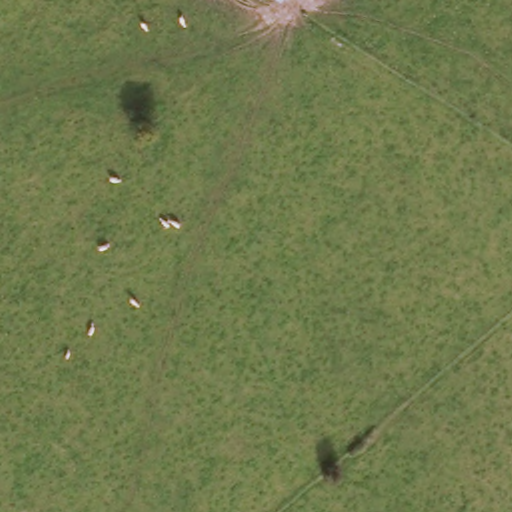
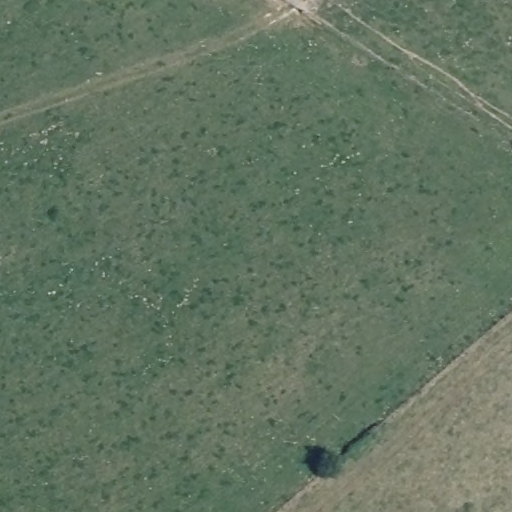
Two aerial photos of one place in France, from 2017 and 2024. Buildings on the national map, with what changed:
unchanged [(279,0),(284,0),(283,2),(279,0)]

